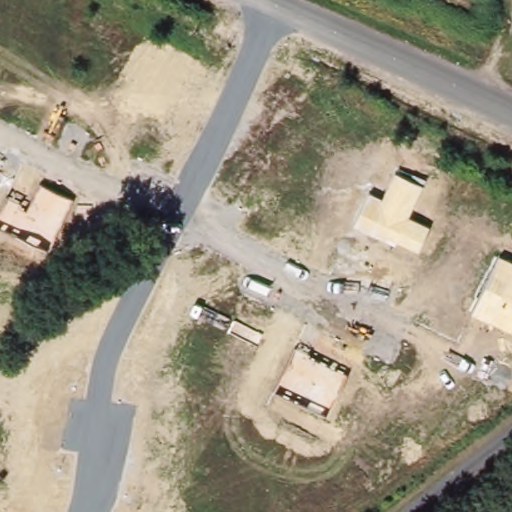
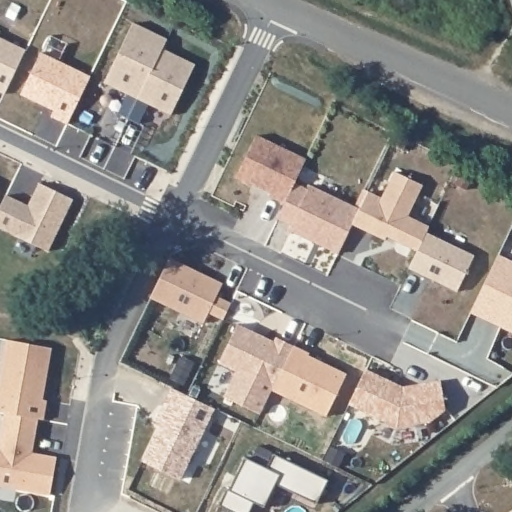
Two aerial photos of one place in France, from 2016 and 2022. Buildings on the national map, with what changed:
new [(126,118),(117,113),(126,94),(103,82),(132,22),(166,39),(161,49),(194,65),(170,115),(146,103),(137,123),(126,118)]
new [(24,50),(3,94),(0,93),(0,38),(24,50)]
new [(39,53),(89,77),(66,124),(50,117),(53,111),(20,95),(39,53)]
new [(307,156),(297,180),(361,209),(353,226),(339,253),(287,230),(291,224),(276,217),(285,200),(236,177),(257,132),(307,156)]
unchanged [(396,242),(394,246),(353,226),(368,192),(382,199),(395,172),(422,186),(407,217),(430,229),(419,252),(396,242)]
unchanged [(8,196),(21,202),(19,207),(27,210),(40,183),(75,201),(46,252),(0,230),(0,211),(8,196)]
new [(474,254),(456,292),(410,270),(419,252),(428,232),(474,254)]
unchanged [(512,262),(512,332),(471,312),(498,255),(512,262)]
new [(168,257),(221,283),(215,296),(230,302),(222,319),(208,312),(202,323),(149,297),(168,257)]
new [(273,391),(263,413),(225,397),(235,372),(219,364),(237,325),(274,342),(276,338),(294,347),(273,391)]
new [(6,340),(51,347),(42,400),(46,400),(43,420),(37,418),(4,412),(0,412),(0,374),(6,340)]
unchanged [(294,347),(349,375),(327,416),(273,391),(294,347)]
new [(365,368),(402,387),(440,380),(445,409),(429,421),(396,427),(348,403),(365,368)]
new [(217,408),(182,480),(143,461),(158,428),(154,427),(172,390),(217,408)]
new [(4,412),(37,418),(31,453),(56,457),(49,495),(0,486),(0,435),(4,412)]
new [(228,490),(234,477),(244,457),(266,467),(272,453),(328,480),(316,504),(275,484),(263,507),(253,502),(249,512),(232,512),(218,506),(226,488),(228,490)]

